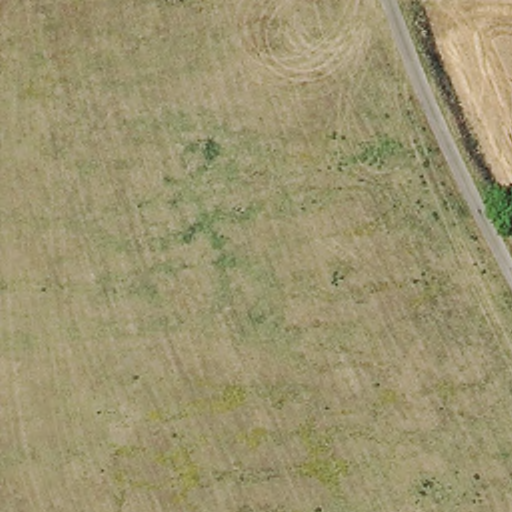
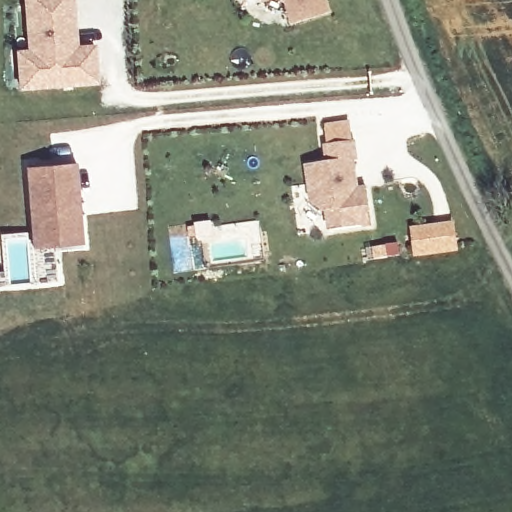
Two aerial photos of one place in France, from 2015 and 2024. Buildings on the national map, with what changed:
new [(95,42),(95,55),(96,79),(20,84),(17,47),(28,46),(26,0),(73,0),(75,26),(76,44),(95,42)]
new [(330,12),(291,24),(285,2),(281,0),(326,0),(330,12)]
new [(323,141),(352,137),(355,156),(351,157),(352,169),(355,185),(365,184),(370,220),(327,226),(325,207),(321,207),(310,198),(305,161),(326,157),(323,141)]
new [(77,162),(84,244),(31,248),(25,165),(77,162)]

